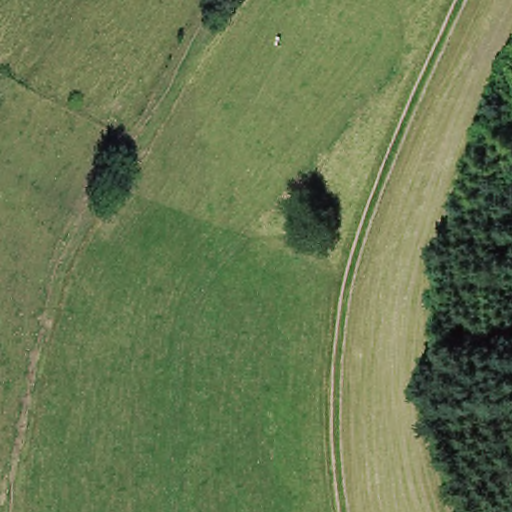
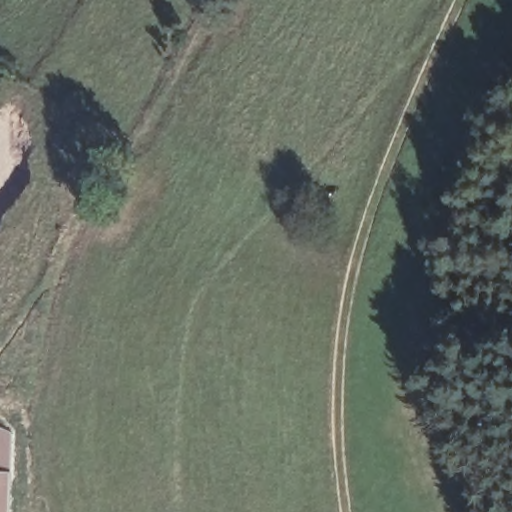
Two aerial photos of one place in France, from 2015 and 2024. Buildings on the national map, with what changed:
new [(9,512),(0,512),(0,424),(12,428),(9,512)]

